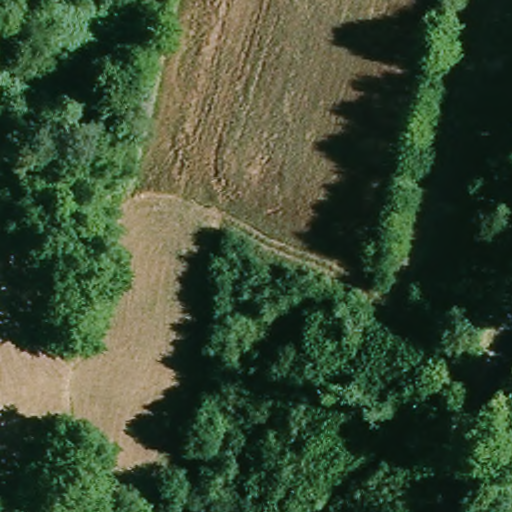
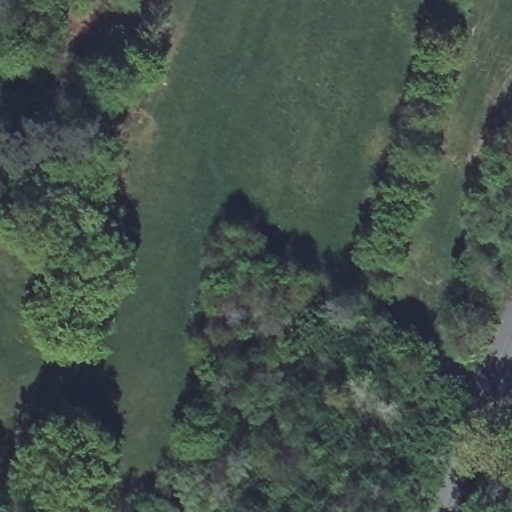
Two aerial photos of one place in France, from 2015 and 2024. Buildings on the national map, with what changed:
unchanged [(455,421),(454,431),(444,430),(446,419),(455,421)]

